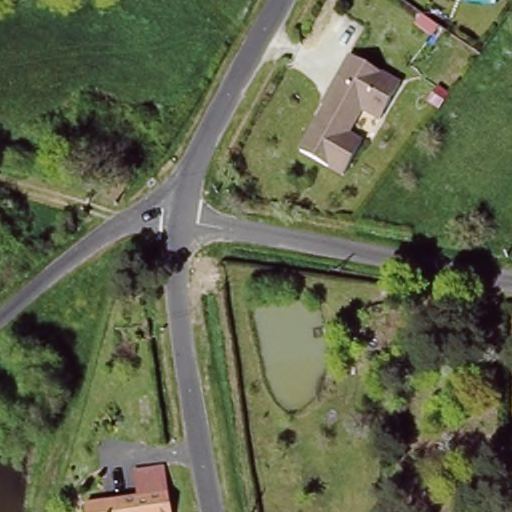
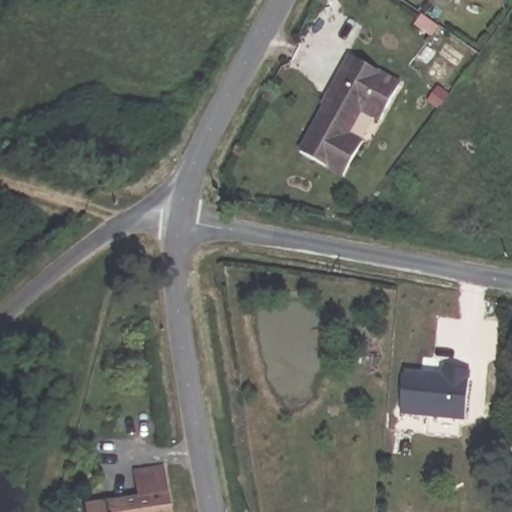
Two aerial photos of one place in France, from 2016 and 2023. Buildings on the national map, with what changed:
unchanged [(358,104),(343,129),(357,138),(336,170),(295,144),(323,99),(320,98),(335,75),(350,51),(397,81),(377,115),(358,104)]
new [(401,416),(404,370),(443,373),(443,369),(471,372),(467,421),(401,416)]
unchanged [(160,512),(77,512),(76,505),(124,497),(121,474),(141,471),(154,469),(160,512)]

